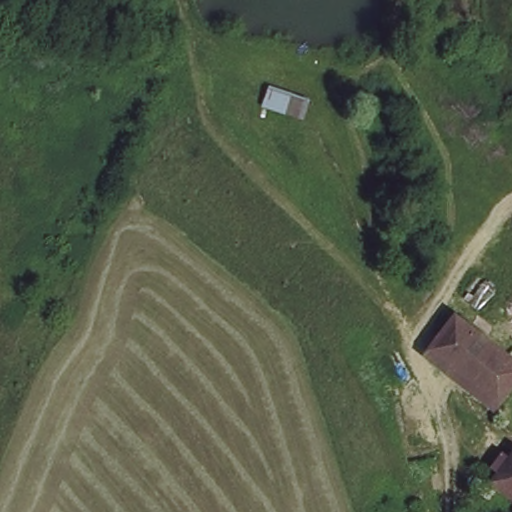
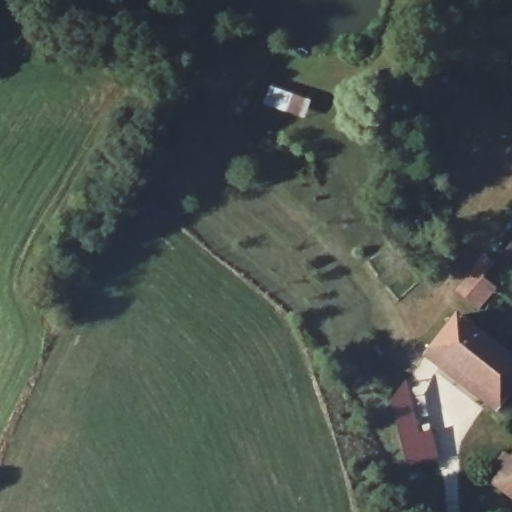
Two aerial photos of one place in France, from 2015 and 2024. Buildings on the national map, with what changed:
unchanged [(498,289),(481,310),(470,301),(475,295),(488,280),(498,289)]
unchanged [(512,354),(512,384),(498,400),(430,342),(458,309),(512,354)]
new [(390,400),(405,378),(417,433),(431,429),(437,457),(405,465),(390,400)]
new [(490,468),(501,450),(509,455),(512,451),(512,501),(490,484),(497,473),(490,468)]

